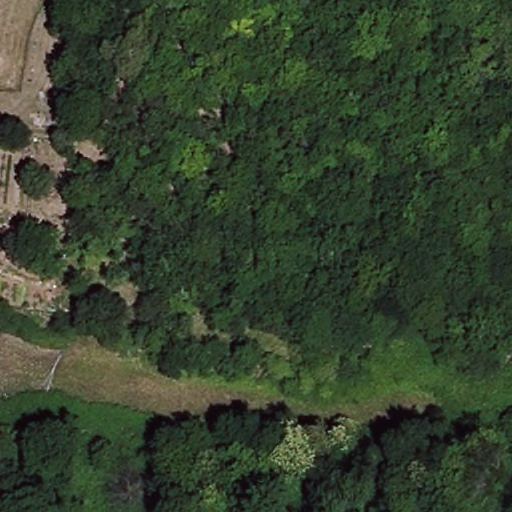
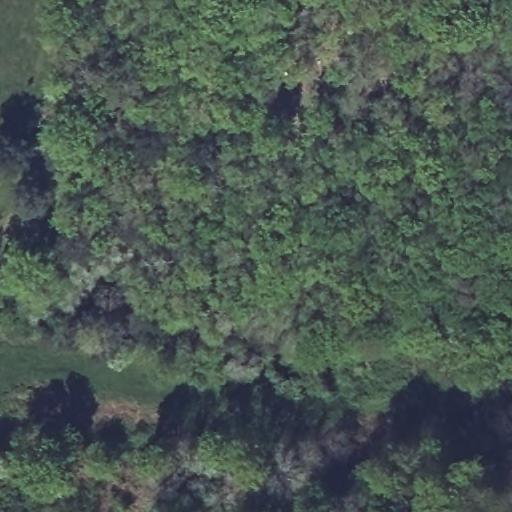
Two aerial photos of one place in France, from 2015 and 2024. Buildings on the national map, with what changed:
unchanged [(207,154),(225,154),(225,172),(207,172),(207,154)]

